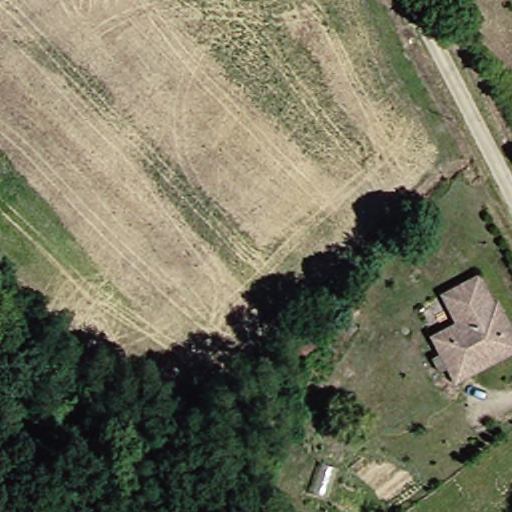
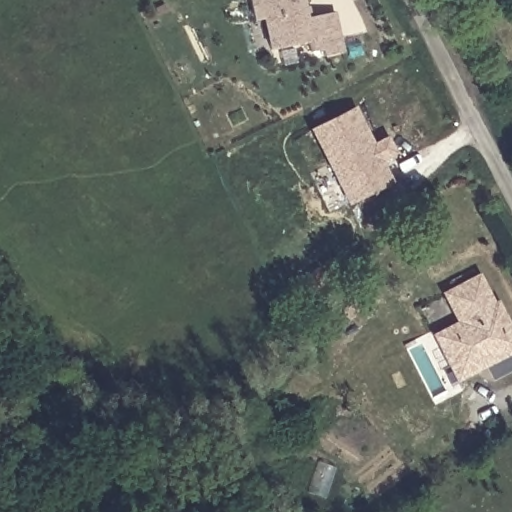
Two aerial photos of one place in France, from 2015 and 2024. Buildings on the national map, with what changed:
new [(346,53),(328,56),(326,49),(315,51),(313,42),(274,50),(268,19),(259,20),(255,0),(306,0),(309,18),(320,15),(338,11),(343,36),(346,53)]
new [(358,108),(377,145),(391,138),(398,153),(384,160),(396,183),(353,204),(315,129),(358,108)]
unchanged [(512,349),(470,371),(452,380),(429,335),(454,323),(439,294),(474,275),(489,305),(493,303),(512,340),(512,349)]

